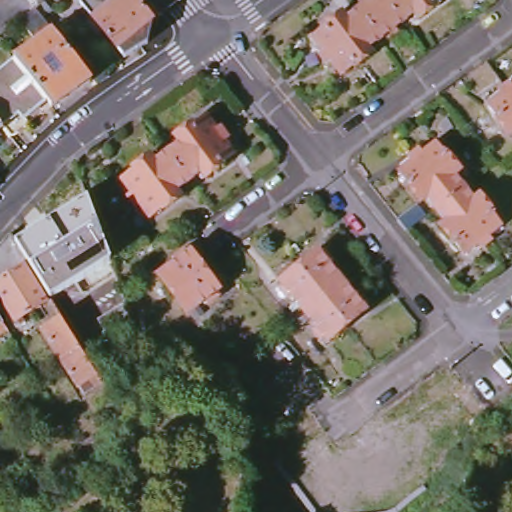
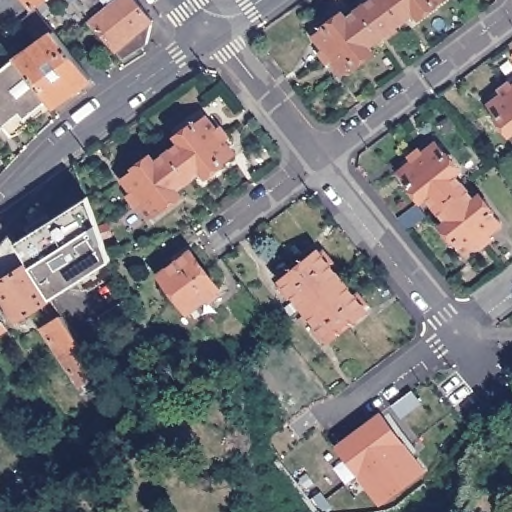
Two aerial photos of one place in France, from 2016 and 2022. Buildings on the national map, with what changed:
unchanged [(38,5),(23,18),(0,37),(0,2),(2,0),(45,0),(38,5)]
unchanged [(92,18),(79,0),(114,0),(92,18)]
unchanged [(114,0),(138,0),(154,20),(150,42),(142,47),(125,59),(92,18),(114,0)]
unchanged [(370,23),(359,9),(372,0),(388,0),(393,7),(402,20),(397,25),(405,37),(398,41),(390,29),(380,37),(370,23)]
unchanged [(393,7),(388,0),(403,0),(393,7)]
unchanged [(393,7),(403,0),(441,0),(420,16),(415,11),(402,20),(393,7)]
unchanged [(110,75),(98,83),(94,77),(54,105),(49,99),(17,58),(40,40),(23,18),(38,5),(66,40),(83,62),(94,54),(110,75)]
unchanged [(370,23),(329,53),(315,35),(345,13),(347,17),(359,9),(370,23)]
unchanged [(370,23),(380,37),(369,45),(373,50),(343,72),(329,53),(370,23)]
unchanged [(0,120),(0,72),(17,58),(49,99),(41,106),(45,111),(13,136),(5,126),(0,130),(0,120)]
unchanged [(507,90),(512,87),(512,96),(507,90)]
unchanged [(512,96),(512,133),(489,103),(507,90),(512,96)]
unchanged [(179,165),(168,151),(182,141),(178,136),(207,115),(221,134),(179,165)]
unchanged [(179,165),(221,134),(234,153),(205,174),(202,169),(189,178),(179,165)]
unchanged [(447,198),(413,156),(432,141),(456,169),(450,174),(462,187),(447,198)]
unchanged [(179,165),(137,196),(123,177),(153,155),(157,159),(168,151),(179,165)]
unchanged [(447,198),(432,209),(422,197),(418,201),(393,170),(413,156),(447,198)]
unchanged [(179,165),(189,178),(177,187),(180,192),(150,214),(137,196),(179,165)]
unchanged [(447,198),(462,187),(470,197),(475,193),(498,222),(479,237),(447,198)]
unchanged [(31,263),(17,239),(90,194),(100,223),(111,254),(117,273),(95,287),(85,274),(51,296),(31,263)]
unchanged [(447,198),(479,237),(460,252),(438,224),(442,221),(432,209),(447,198)]
unchanged [(404,231),(394,219),(413,205),(423,216),(404,231)]
unchanged [(17,239),(31,263),(27,265),(48,300),(25,316),(27,319),(22,323),(20,319),(18,320),(0,291),(0,248),(12,233),(17,239)]
unchanged [(347,324),(329,339),(305,310),(282,281),(301,266),(320,251),(343,280),(366,308),(347,324)]
unchanged [(188,315),(173,295),(160,276),(190,253),(205,272),(220,291),(188,315)]
unchanged [(103,330),(106,328),(98,316),(101,315),(94,304),(95,302),(89,292),(118,274),(137,327),(121,336),(112,342),(103,330)]
unchanged [(0,336),(0,315),(10,330),(0,336)]
unchanged [(102,379),(83,390),(43,326),(62,315),(102,379)]
new [(426,472),(380,507),(335,445),(380,412),(426,472)]
demolished [(384,432),(397,450),(412,470),(382,492),(383,494),(365,506),(358,495),(352,499),(345,488),(350,485),(337,465),(353,452),(355,454),(384,432)]

